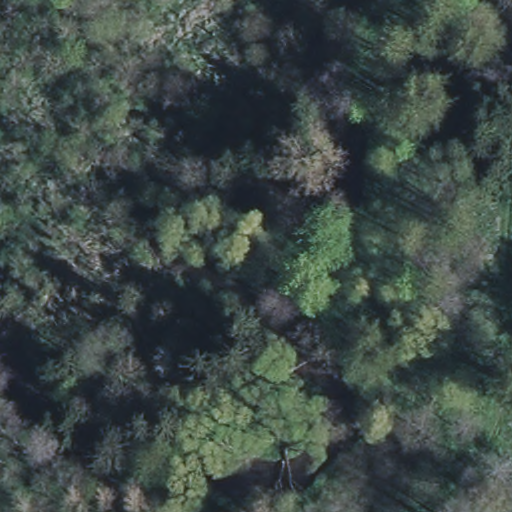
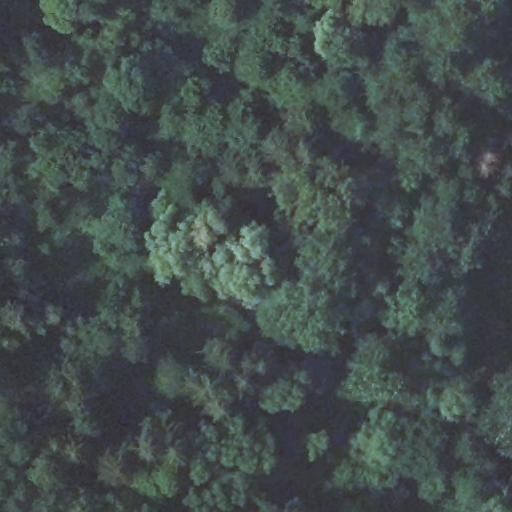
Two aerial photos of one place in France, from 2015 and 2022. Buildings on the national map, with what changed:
[]

